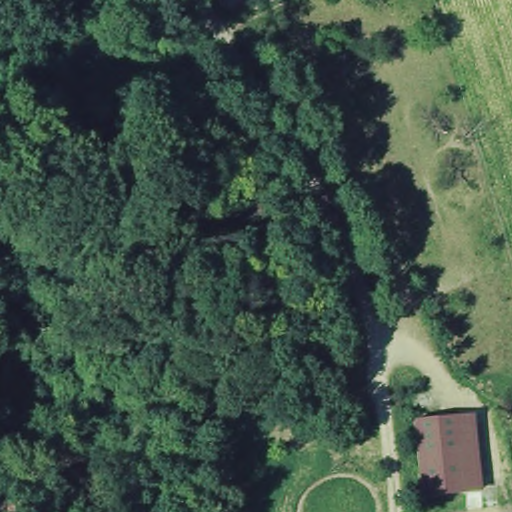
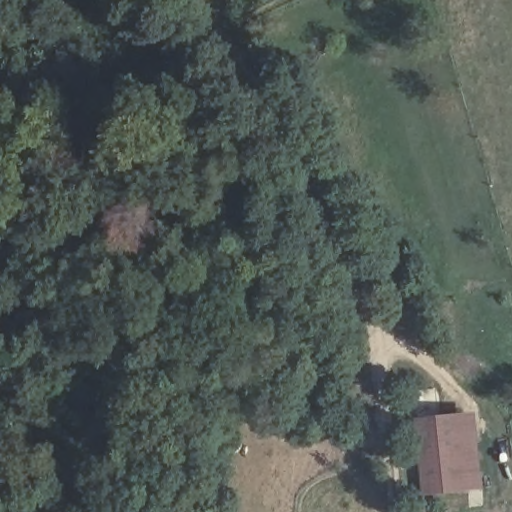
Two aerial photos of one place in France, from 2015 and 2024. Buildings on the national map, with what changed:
unchanged [(482,488),(422,494),(414,417),(475,412),(482,488)]

